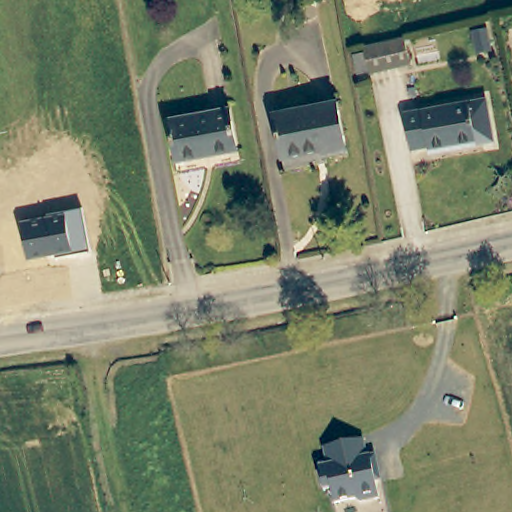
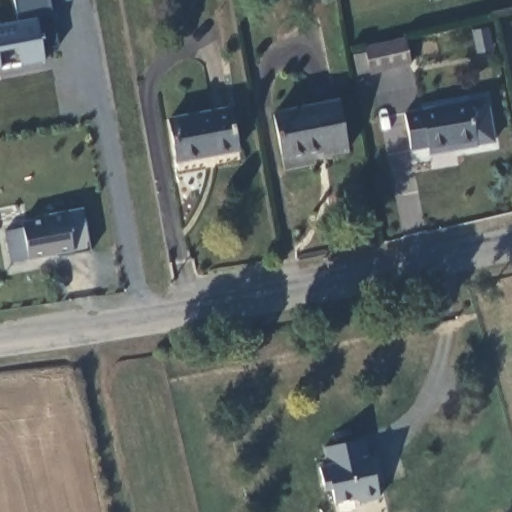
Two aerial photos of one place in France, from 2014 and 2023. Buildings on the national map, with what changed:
new [(58,46),(42,49),(44,62),(0,70),(0,25),(19,21),(14,0),(49,0),(58,46)]
unchanged [(400,66),(363,74),(358,49),(394,41),(400,66)]
unchanged [(321,158),(320,153),(280,159),(272,115),(337,105),(345,154),(321,158)]
unchanged [(483,145),(466,148),(466,150),(444,153),(444,149),(417,153),(417,151),(400,154),(393,117),(458,105),(460,118),(477,115),(483,145)]
unchanged [(171,164),(162,123),(223,112),(233,159),(210,163),(208,157),(171,164)]
unchanged [(91,250),(57,257),(57,254),(29,260),(20,222),(82,209),(91,250)]
unchanged [(355,432),(358,450),(367,449),(370,467),(365,468),(370,491),(350,495),(345,492),(325,496),(321,477),(314,478),(310,460),(319,458),(316,440),(355,432)]

